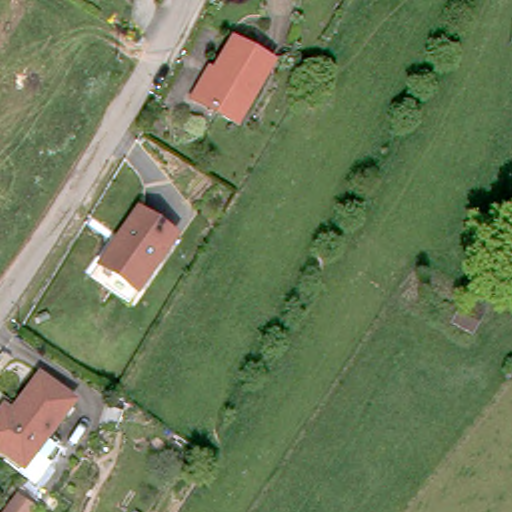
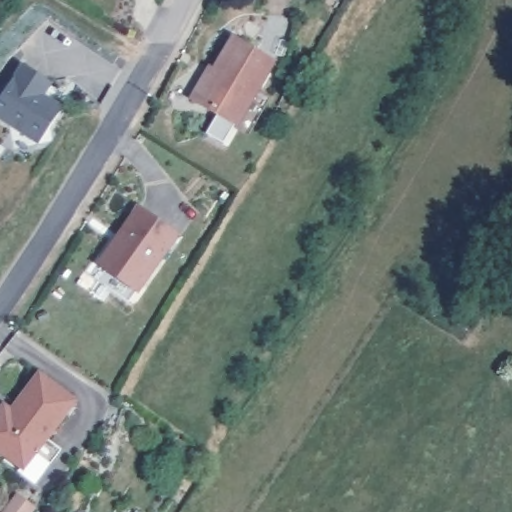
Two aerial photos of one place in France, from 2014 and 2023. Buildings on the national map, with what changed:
unchanged [(217,67),(221,69),(237,41),(272,61),(240,120),(200,96),(217,67)]
new [(52,83),(43,97),(63,107),(38,146),(0,120),(0,97),(22,63),(52,83)]
unchanged [(119,285),(99,270),(107,258),(122,238),(124,240),(130,231),(127,230),(146,203),(184,230),(145,285),(135,297),(119,285)]
unchanged [(473,328),(456,318),(451,326),(435,316),(452,286),(469,296),(465,302),(482,313),(473,328)]
unchanged [(26,474),(17,467),(22,461),(0,444),(0,407),(2,405),(9,410),(37,373),(69,397),(44,432),(60,444),(56,449),(34,480),(26,474)]
unchanged [(37,507),(33,512),(2,512),(16,492),(37,507)]

